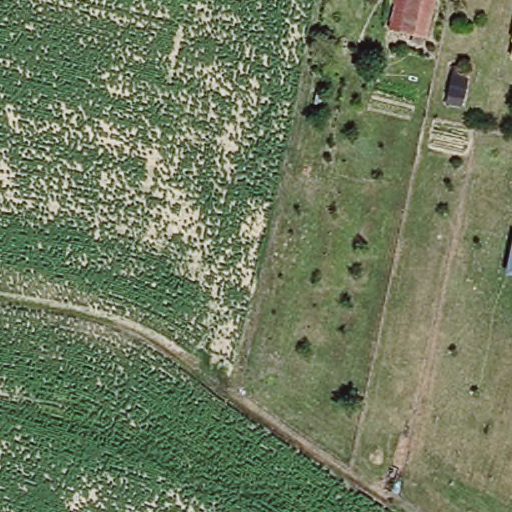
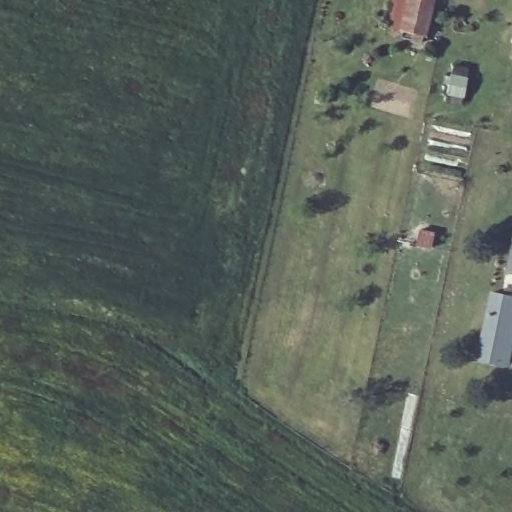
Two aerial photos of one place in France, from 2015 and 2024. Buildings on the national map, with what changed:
unchanged [(395,26),(402,0),(427,0),(420,33),(395,26)]
unchanged [(510,20),(512,13),(512,49),(508,48),(510,20)]
unchanged [(507,81),(512,82),(512,111),(502,110),(507,81)]
unchanged [(512,238),(512,273),(505,272),(512,238)]
new [(490,291),(512,297),(512,341),(506,367),(474,360),(490,291)]

